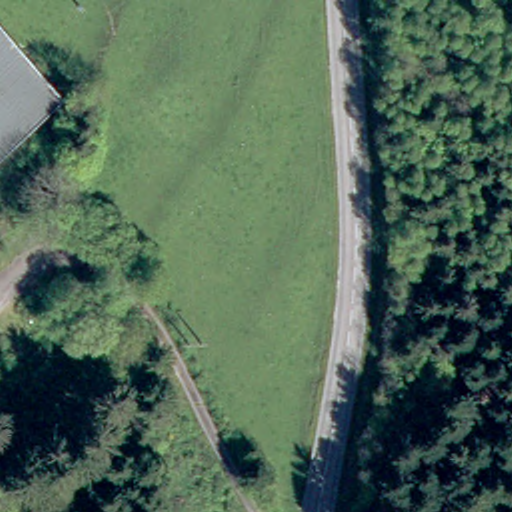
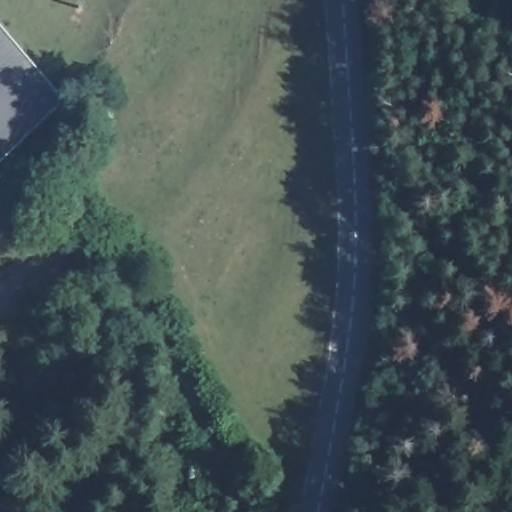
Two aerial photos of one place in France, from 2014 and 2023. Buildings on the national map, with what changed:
unchanged [(71,103),(0,170),(0,31),(71,103)]

